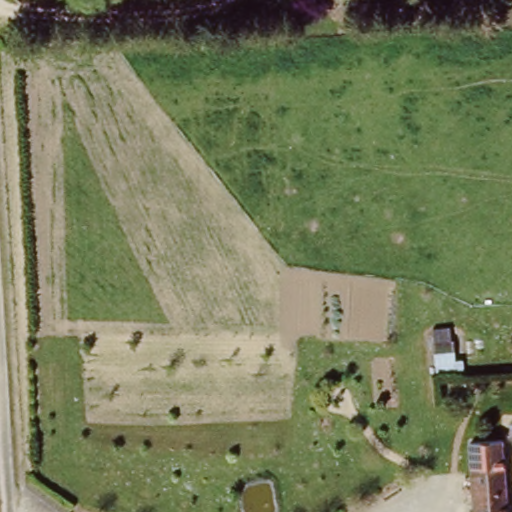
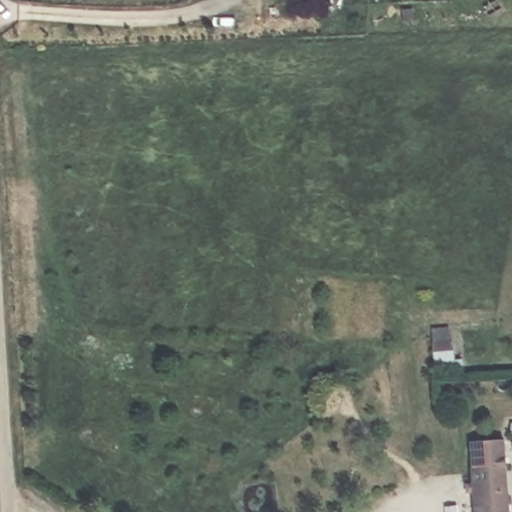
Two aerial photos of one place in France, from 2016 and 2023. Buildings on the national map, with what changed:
unchanged [(451,338),(454,338),(455,360),(463,358),(464,370),(435,372),(432,325),(449,325),(451,338)]
unchanged [(512,420),(512,433),(509,433),(511,420),(512,420)]
unchanged [(504,438),(509,512),(475,512),(474,507),(463,508),(462,490),(474,489),(471,440),(504,438)]

